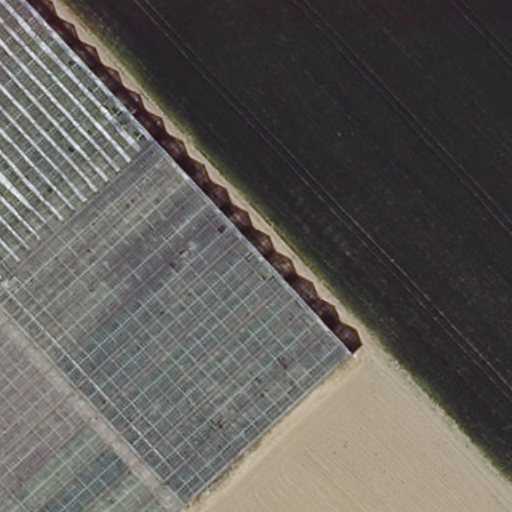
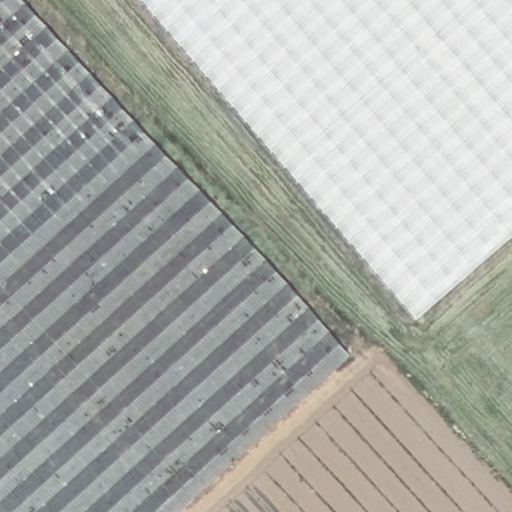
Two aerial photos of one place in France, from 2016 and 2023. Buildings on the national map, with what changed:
unchanged [(176,512),(0,512),(0,0),(22,0),(351,355),(176,512)]
new [(144,0),(512,0),(512,250),(427,323),(144,0)]

